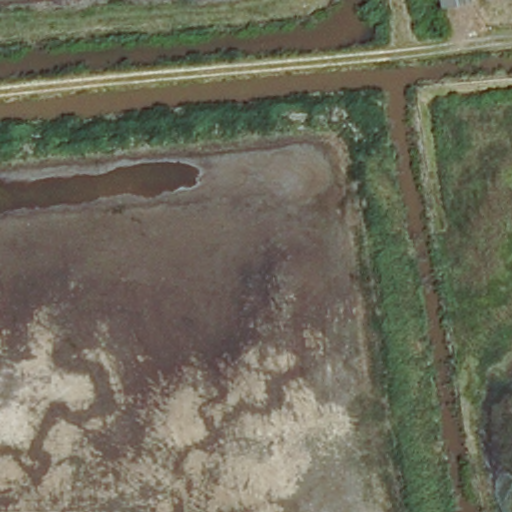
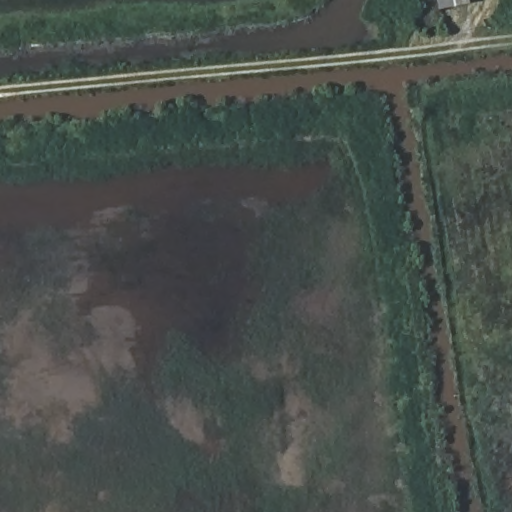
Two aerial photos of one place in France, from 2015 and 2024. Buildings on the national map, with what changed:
unchanged [(475,5),(441,10),(441,0),(474,0),(475,5)]

